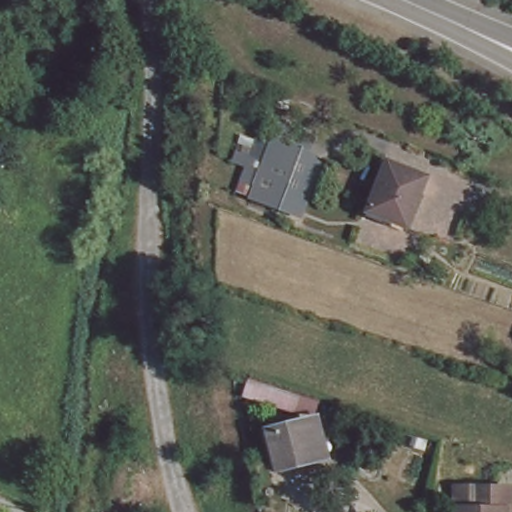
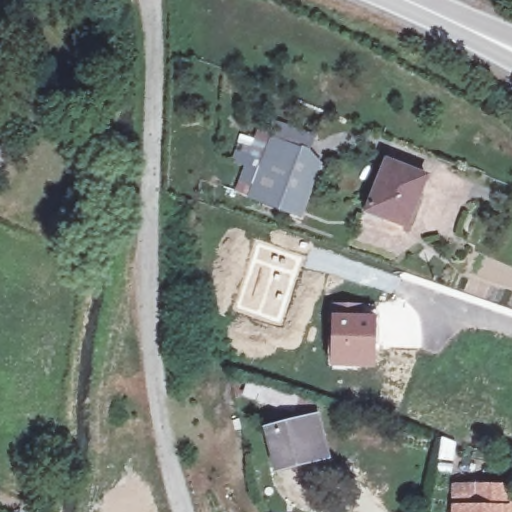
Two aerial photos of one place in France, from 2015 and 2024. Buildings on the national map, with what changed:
unchanged [(309,148),(305,160),(321,174),(297,225),(235,201),(261,130),(309,148)]
unchanged [(425,178),(405,231),(368,218),(387,164),(425,178)]
new [(330,302),(369,304),(368,314),(376,314),(375,369),(328,368),(330,302)]
unchanged [(277,390),(275,406),(247,403),(249,387),(277,390)]
unchanged [(317,422),(327,454),(279,468),(268,436),(317,422)]
unchanged [(449,506),(462,505),(462,487),(476,487),(507,486),(509,510),(502,510),(502,512),(449,512),(449,506)]

